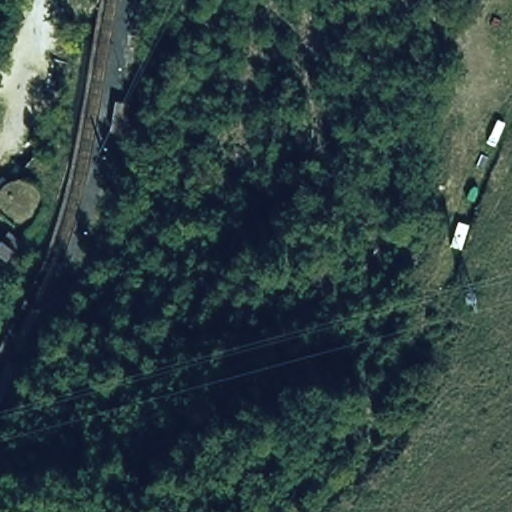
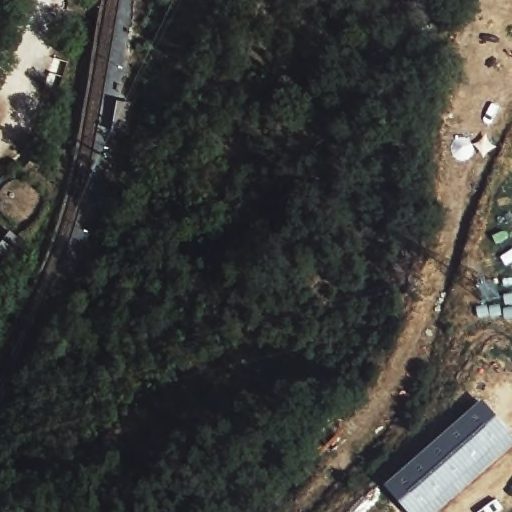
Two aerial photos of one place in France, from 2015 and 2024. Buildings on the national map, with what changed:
new [(439,512),(407,512),(385,487),(483,402),(512,434),(512,447),(439,512)]

